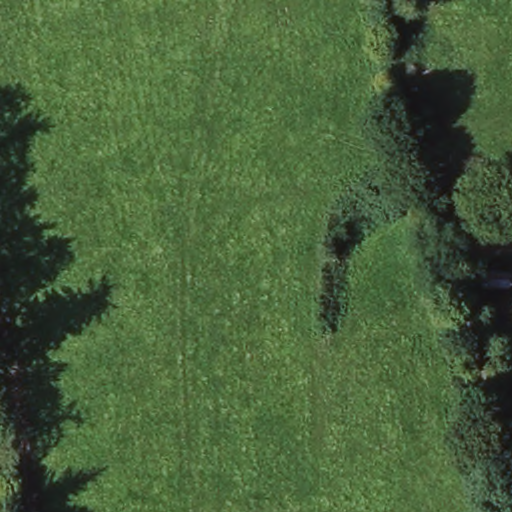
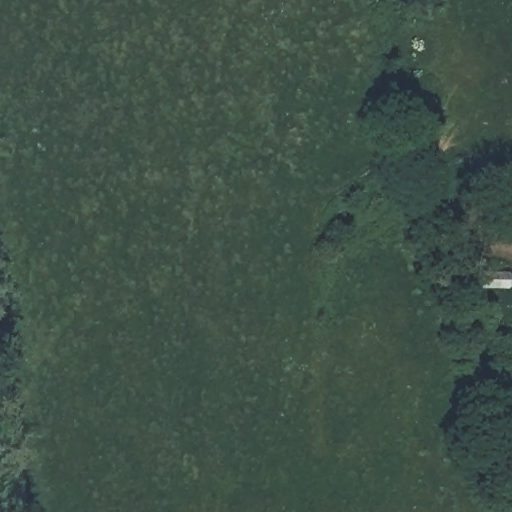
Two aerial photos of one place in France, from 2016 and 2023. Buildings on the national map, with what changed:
unchanged [(512,235),(461,223),(467,197),(512,207),(512,235)]
unchanged [(512,279),(512,296),(486,291),(489,281),(492,275),(512,279)]

